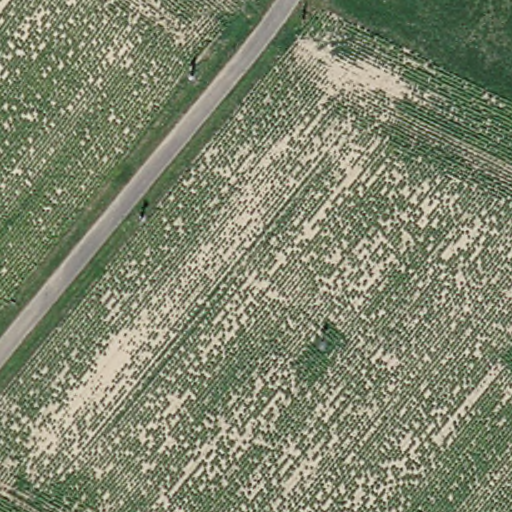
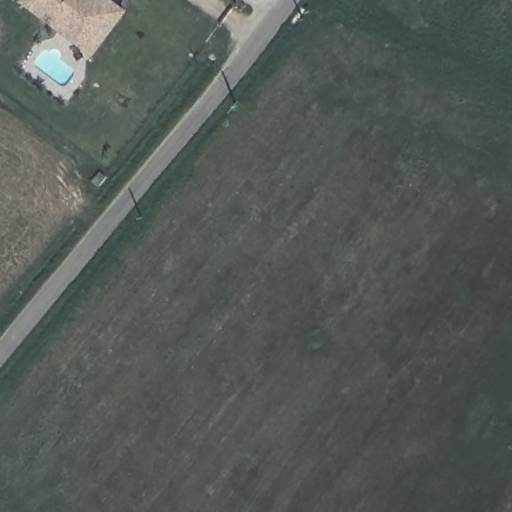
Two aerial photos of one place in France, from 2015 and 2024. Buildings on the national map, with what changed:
new [(127,12),(93,57),(19,2),(21,0),(111,0),(127,12)]

